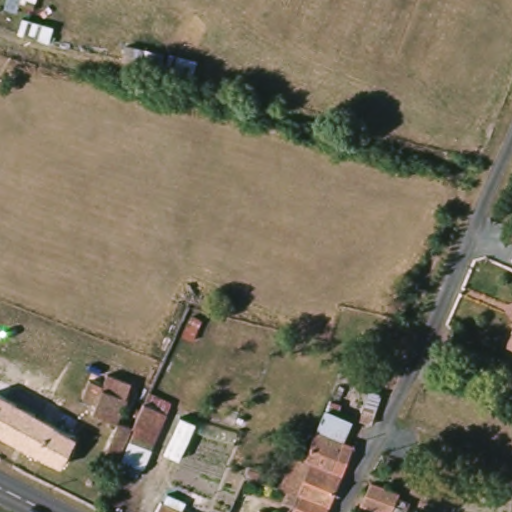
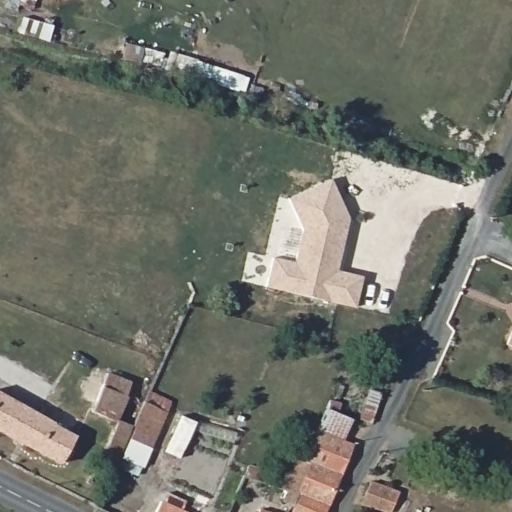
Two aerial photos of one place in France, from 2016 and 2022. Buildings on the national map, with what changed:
new [(362,276),(355,307),(266,287),(273,257),(294,262),(301,228),(289,199),(331,179),(349,217),(337,270),(362,276)]
unchanged [(507,343),(512,331),(512,345),(507,343)]
unchanged [(168,411),(153,444),(133,436),(123,460),(106,452),(120,422),(94,409),(99,398),(86,392),(94,373),(95,372),(109,378),(114,369),(138,380),(137,382),(123,415),(122,417),(129,420),(139,424),(148,402),(168,411)]
unchanged [(16,402),(48,420),(60,397),(75,405),(69,416),(89,427),(68,467),(0,433),(0,402),(8,385),(22,391),(16,402)]
new [(180,416),(195,423),(178,460),(162,452),(180,416)]
unchanged [(288,493),(270,487),(275,478),(283,482),(294,457),(306,461),(317,435),(346,443),(326,502),(322,512),(285,512),(289,504),(284,502),(288,493)]
unchanged [(362,481),(398,493),(395,502),(405,507),(403,512),(381,512),(354,502),(362,481)]
unchanged [(159,502),(181,512),(154,512),(159,502)]
unchanged [(262,510),(267,512),(261,512),(262,510)]

